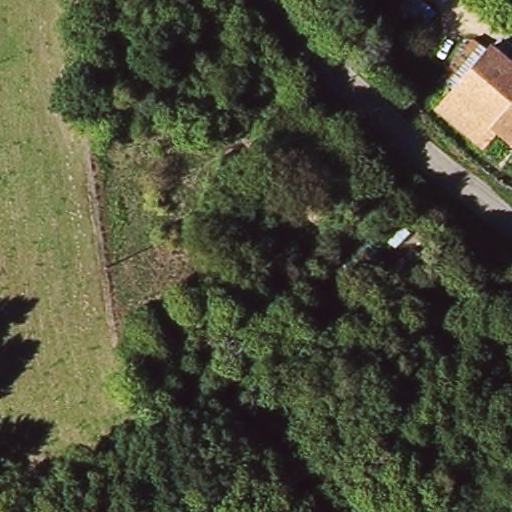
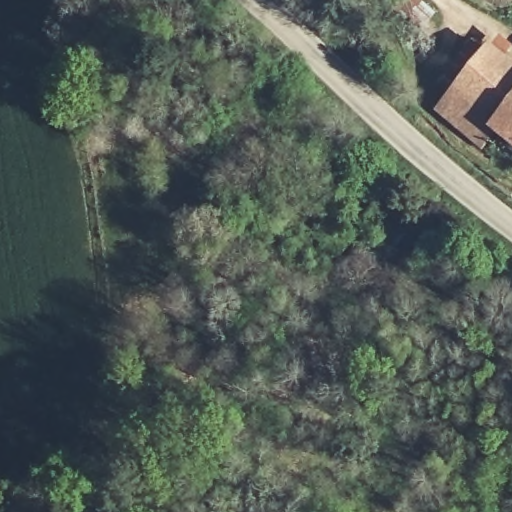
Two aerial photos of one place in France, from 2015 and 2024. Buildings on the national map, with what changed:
unchanged [(421,30),(390,5),(396,0),(418,0),(435,15),(421,30)]
unchanged [(483,148),(443,111),(440,107),(439,106),(443,101),(491,50),(512,68),(512,148),(497,135),(483,148)]

